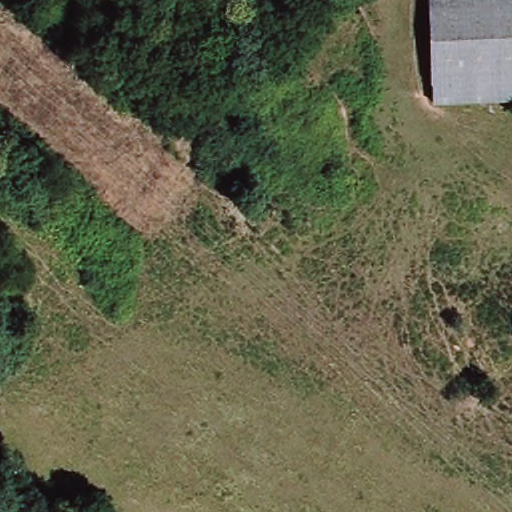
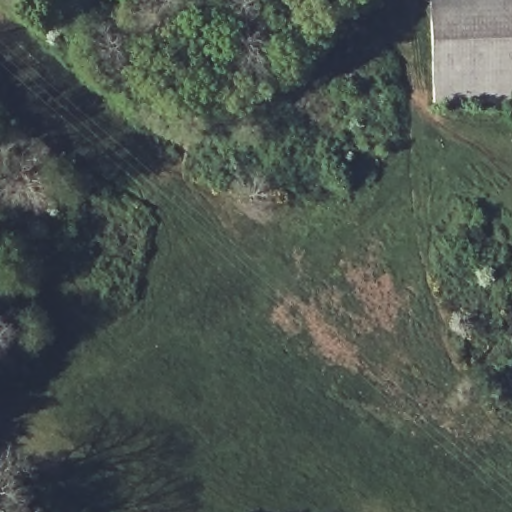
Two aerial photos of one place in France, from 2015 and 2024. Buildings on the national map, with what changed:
unchanged [(512,0),(512,103),(441,108),(434,0),(512,0)]

